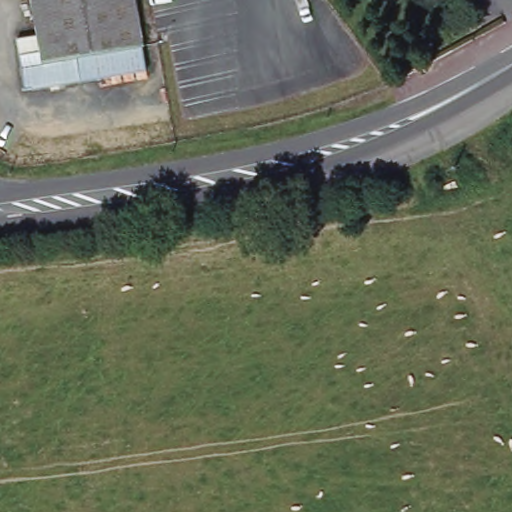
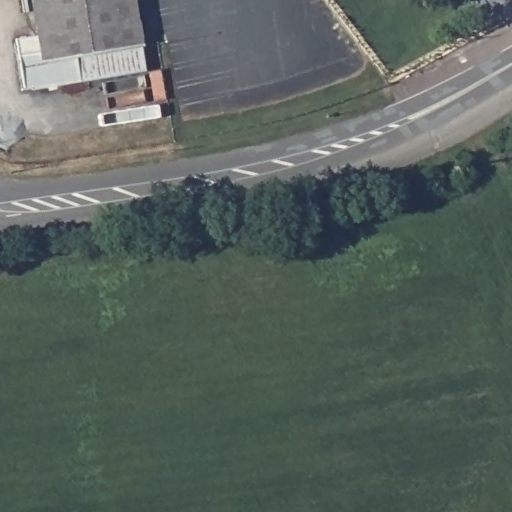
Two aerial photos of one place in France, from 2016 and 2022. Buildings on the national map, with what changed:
unchanged [(145,70),(24,89),(15,39),(36,35),(31,0),(135,0),(145,70)]

